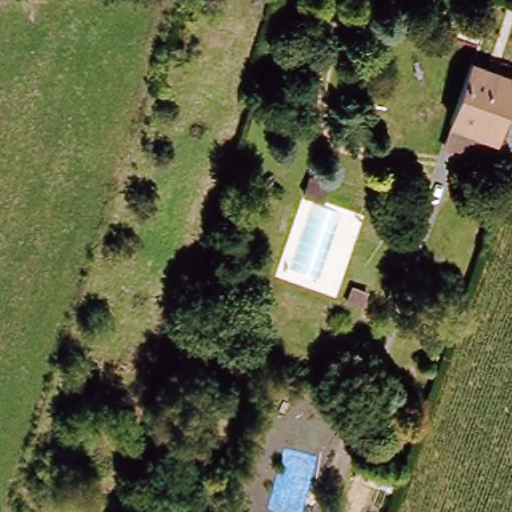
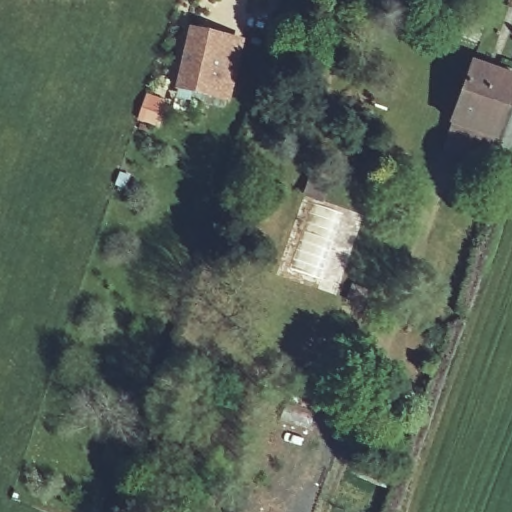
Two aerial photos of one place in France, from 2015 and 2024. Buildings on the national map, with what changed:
new [(228,100),(176,91),(189,27),(241,38),(228,100)]
unchanged [(449,134),(464,89),(469,76),(512,91),(491,148),(449,134)]
unchanged [(348,305),(354,290),(367,295),(361,311),(348,305)]

